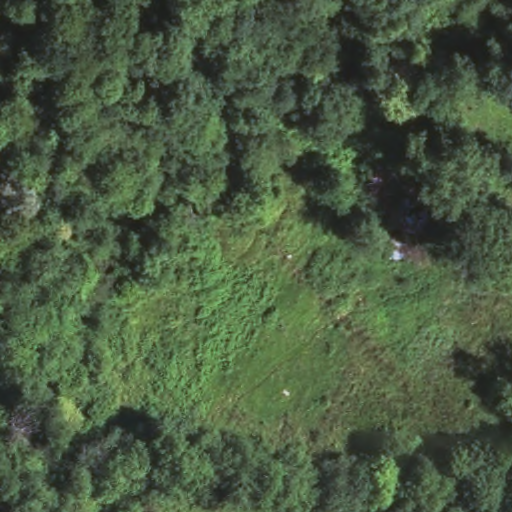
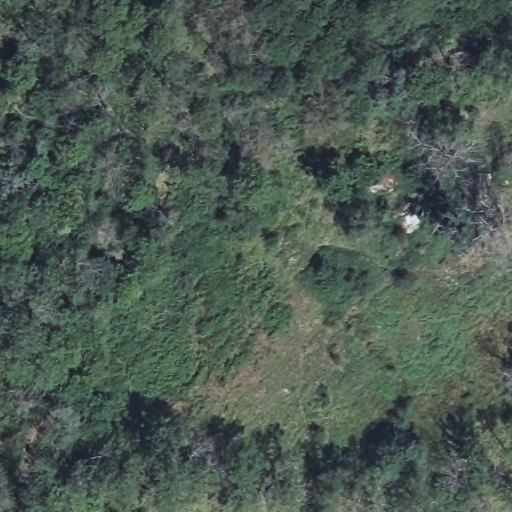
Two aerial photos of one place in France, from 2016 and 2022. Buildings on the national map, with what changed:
unchanged [(482,146),(491,202),(450,200),(445,155),(482,146)]

